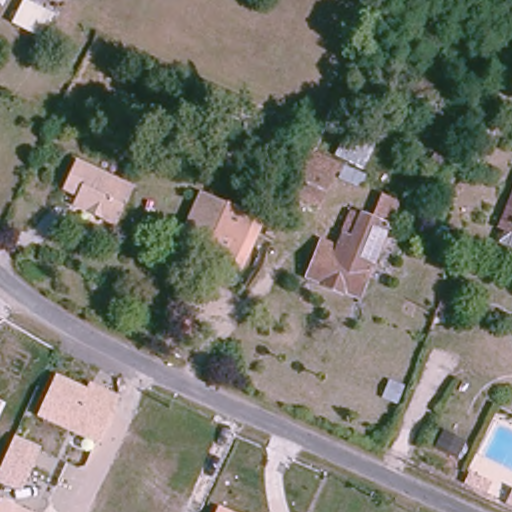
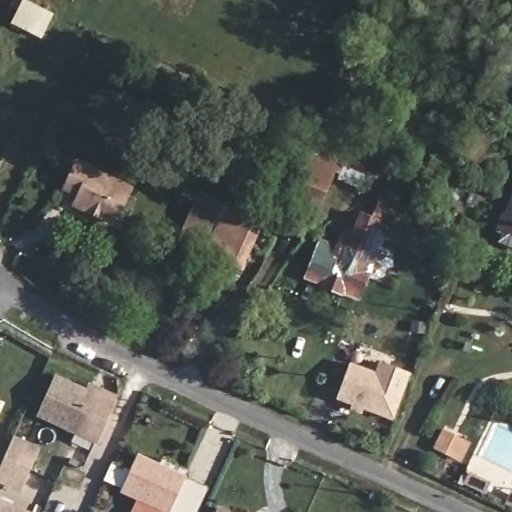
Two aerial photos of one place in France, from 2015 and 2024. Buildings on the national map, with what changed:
unchanged [(21,0),(26,0),(52,12),(40,37),(10,23),(21,0)]
unchanged [(511,85),(512,81),(512,86),(511,85)]
unchanged [(291,194),(310,150),(331,156),(326,171),(334,176),(320,205),(291,194)]
unchanged [(133,191),(117,227),(101,216),(101,208),(93,205),(91,212),(73,205),(77,192),(60,186),(73,160),(133,191)]
unchanged [(187,240),(208,191),(229,200),(206,248),(187,240)]
unchanged [(495,232),(512,192),(512,240),(495,232)]
unchanged [(402,202),(395,217),(376,210),(382,195),(402,202)]
unchanged [(229,200),(258,213),(236,261),(206,248),(229,200)]
unchanged [(319,287),(303,279),(308,269),(322,240),(334,246),(339,236),(350,241),(364,216),(391,227),(379,251),(370,248),(364,262),(365,263),(366,263),(374,267),(363,292),(357,304),(339,296),(319,287)]
unchanged [(456,248),(451,257),(440,251),(445,244),(456,248)]
new [(375,371),(379,360),(413,373),(395,421),(364,411),(363,415),(350,410),(352,404),(336,399),(350,361),(375,371)]
unchanged [(90,381),(119,395),(98,443),(37,415),(56,373),(87,387),(90,381)]
unchanged [(0,402),(1,403),(0,406),(0,402)]
new [(464,462),(433,447),(443,428),(474,443),(464,462)]
unchanged [(0,482),(0,467),(15,435),(41,447),(21,491),(0,482)]
new [(210,485),(198,512),(130,512),(135,501),(119,493),(123,487),(105,479),(114,460),(131,468),(138,452),(210,485)]
unchanged [(0,512),(0,498),(32,512),(0,512)]
unchanged [(232,512),(216,512),(219,506),(232,512)]

